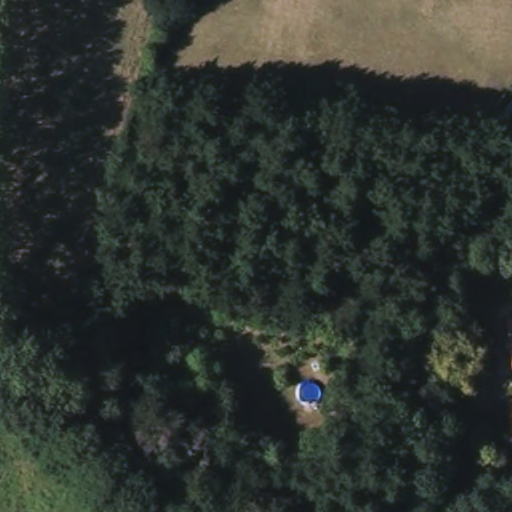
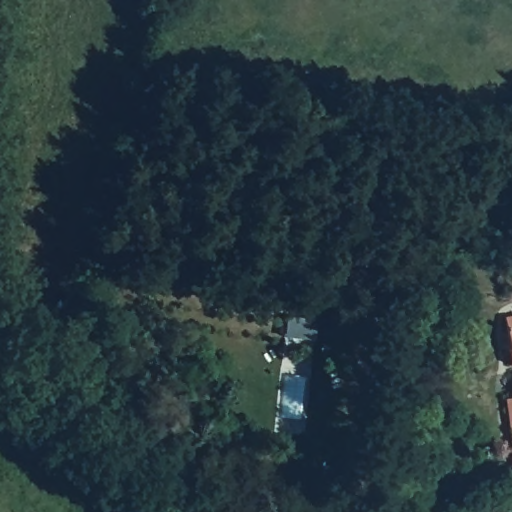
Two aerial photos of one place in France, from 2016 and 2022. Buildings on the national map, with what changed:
unchanged [(512,369),(505,318),(512,317),(512,369)]
unchanged [(506,402),(512,401),(512,447),(506,402)]

